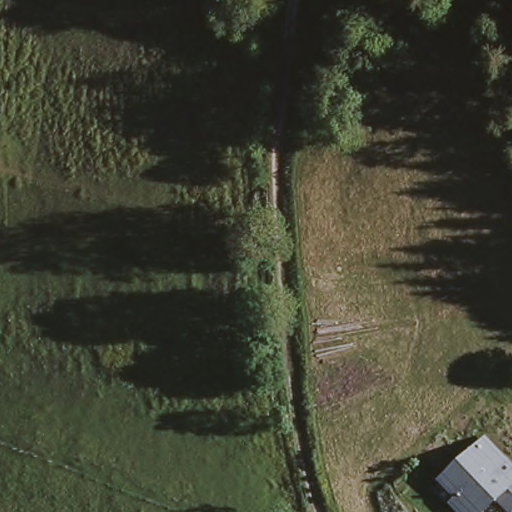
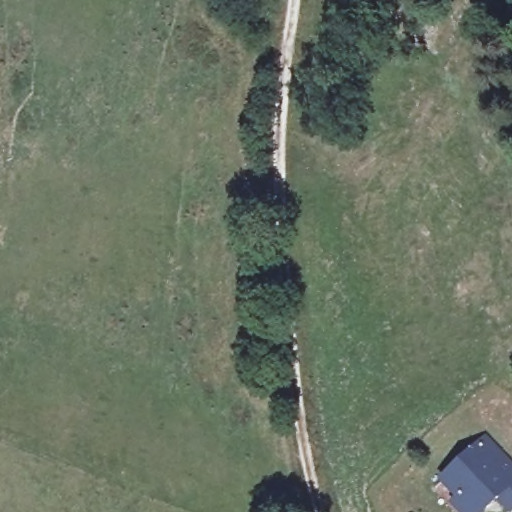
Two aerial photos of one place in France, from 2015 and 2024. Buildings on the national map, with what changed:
unchanged [(497,502),(486,512),(457,512),(452,506),(457,500),(438,485),(486,438),(512,465),(512,512),(506,512),(497,502)]

